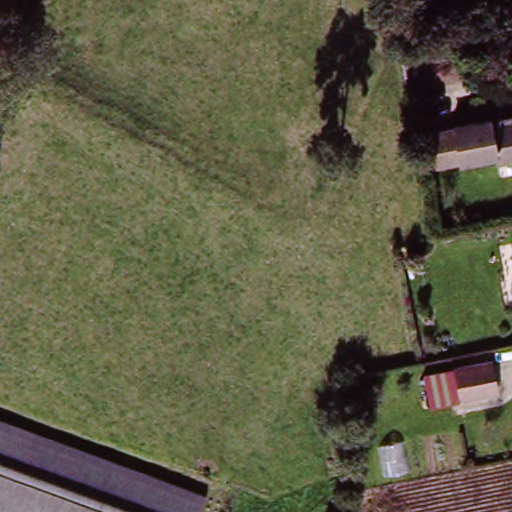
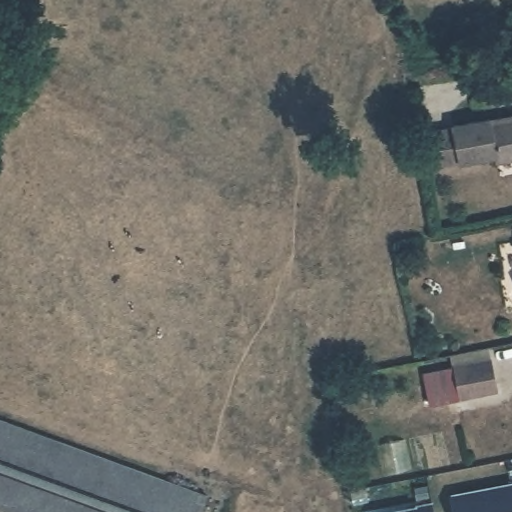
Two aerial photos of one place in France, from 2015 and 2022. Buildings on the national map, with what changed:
unchanged [(408,0),(435,0),(440,24),(414,28),(408,0)]
unchanged [(504,153),(445,164),(438,127),(476,119),(512,112),(512,158),(505,159),(504,153)]
unchanged [(425,379),(457,372),(456,368),(492,359),(500,389),(464,399),(461,387),(429,394),(425,379)]
unchanged [(0,511),(0,421),(203,497),(197,512),(3,512),(0,511)]
new [(451,494),(512,481),(512,512),(455,512),(451,494)]
new [(373,512),(432,503),(434,512),(374,512),(373,512)]

